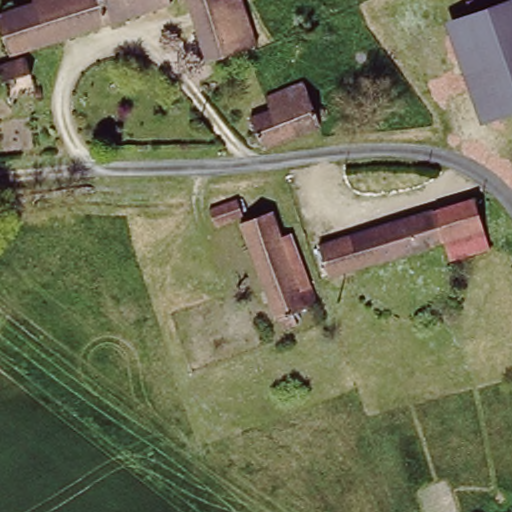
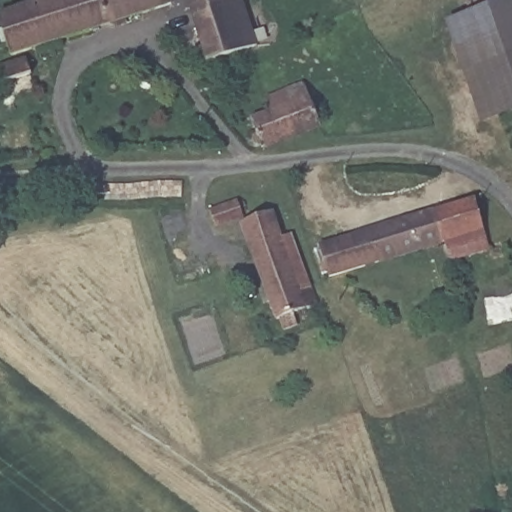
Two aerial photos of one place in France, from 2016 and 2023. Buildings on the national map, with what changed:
unchanged [(49,0),(127,0),(131,11),(7,54),(0,32),(0,16),(49,0)]
unchanged [(131,11),(127,0),(161,0),(131,11)]
unchanged [(257,34),(217,48),(200,0),(245,0),(257,34)]
unchanged [(512,113),(479,121),(452,16),(512,1),(512,113)]
unchanged [(25,62),(30,76),(0,87),(0,71),(25,62)]
unchanged [(315,97),(317,108),(325,106),(327,106),(330,107),(332,109),(334,111),(335,115),(335,119),(335,121),(333,124),(330,125),(328,127),(323,128),(325,133),(257,148),(255,148),(252,148),(250,147),(248,144),(247,142),(248,139),(249,137),(251,136),(257,134),(255,126),(277,120),(275,107),(315,97)]
unchanged [(477,197),(493,248),(454,261),(448,241),(439,209),(477,197)]
unchanged [(315,308),(292,316),(295,329),(282,334),(278,322),(274,323),(237,224),(215,232),(208,212),(235,203),(242,222),(243,226),(271,216),(280,240),(290,236),(315,308)]
unchanged [(439,209),(448,241),(332,276),(323,243),(439,209)]

